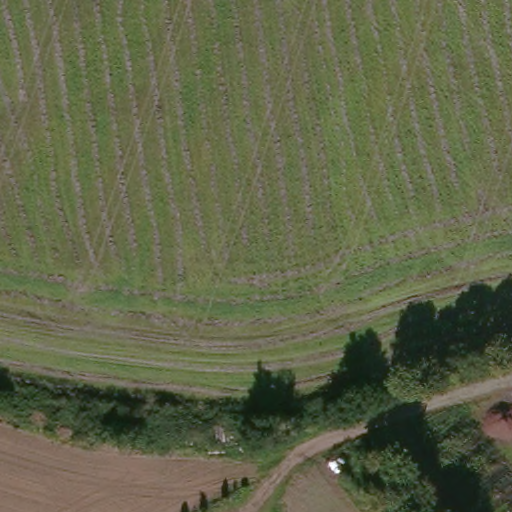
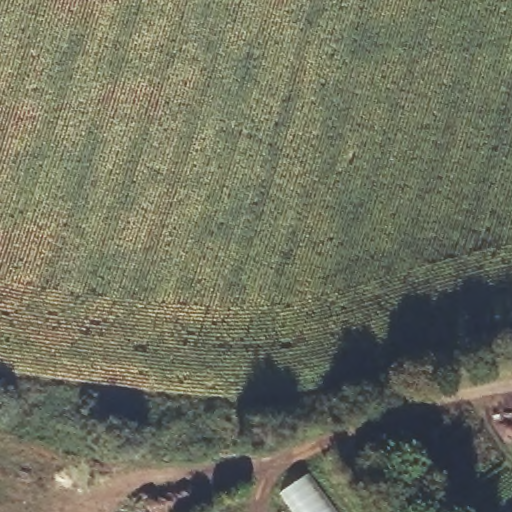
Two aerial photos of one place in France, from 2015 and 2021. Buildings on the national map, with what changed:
new [(335,512),(294,512),(281,494),(308,475),(335,512)]

